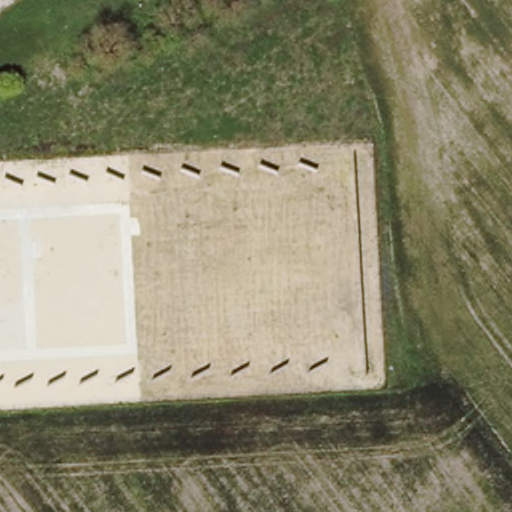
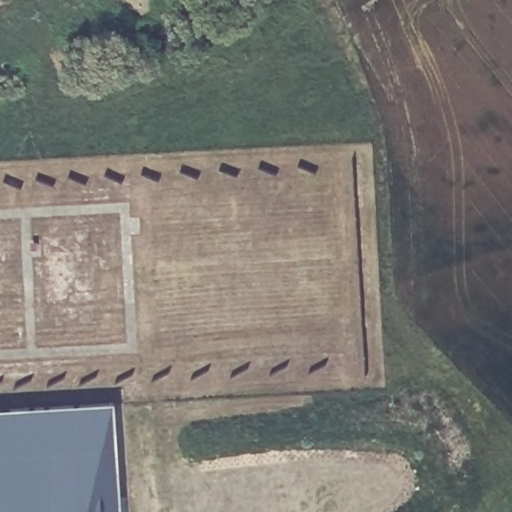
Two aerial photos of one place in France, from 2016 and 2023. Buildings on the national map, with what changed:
new [(113,402),(120,512),(0,512),(0,409),(113,402)]

